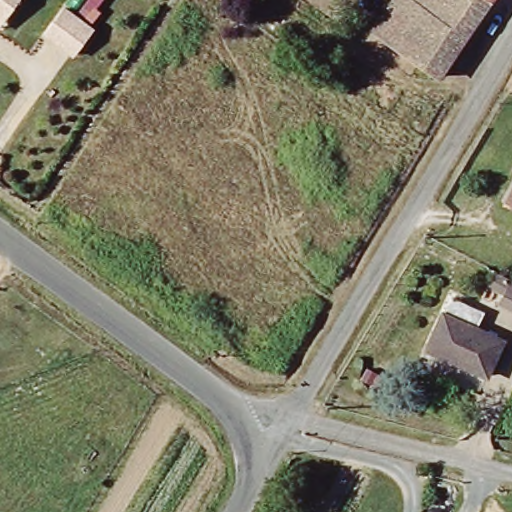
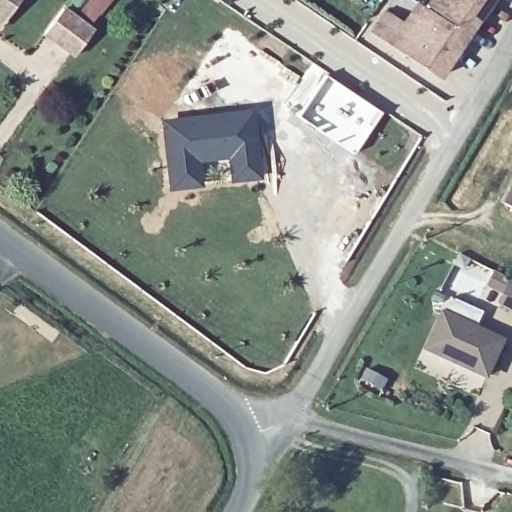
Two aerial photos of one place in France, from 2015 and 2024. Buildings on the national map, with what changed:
unchanged [(9,20),(2,29),(0,27),(0,0),(24,0),(9,20)]
unchanged [(415,6),(419,0),(495,0),(454,62),(393,22),(407,1),(415,6)]
unchanged [(74,55),(45,33),(63,8),(93,31),(74,55)]
new [(327,74),(382,112),(353,154),(298,114),(327,74)]
new [(255,106),(263,179),(229,182),(226,160),(201,162),(202,186),(167,190),(159,119),(255,106)]
unchanged [(503,202),(512,186),(512,207),(503,202)]
unchanged [(508,278),(512,281),(512,314),(495,305),(508,278)]
unchanged [(485,374),(428,345),(451,300),(482,316),(475,330),(501,343),(485,374)]

